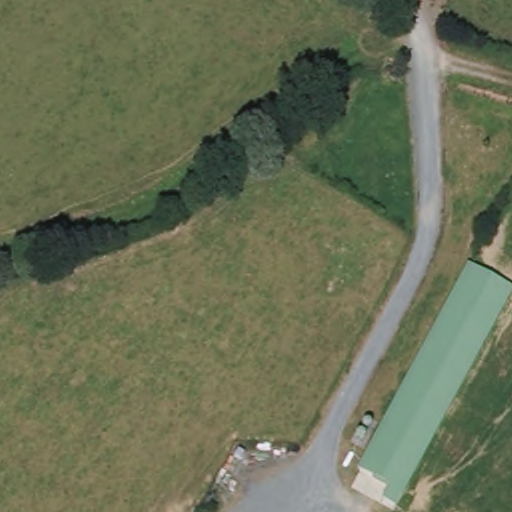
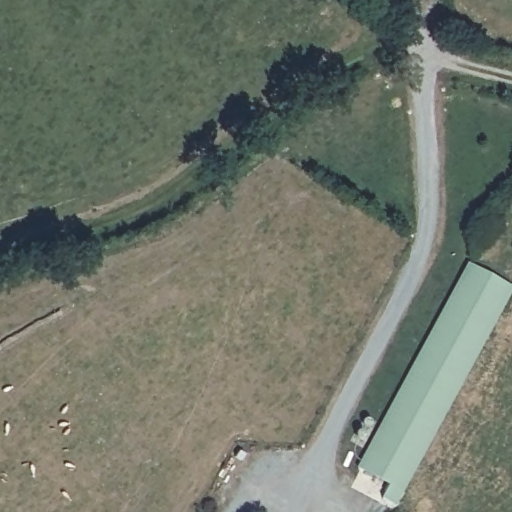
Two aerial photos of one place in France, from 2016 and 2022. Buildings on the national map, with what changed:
unchanged [(471,264),(512,289),(512,294),(394,510),(381,502),(388,487),(361,471),(471,264)]

